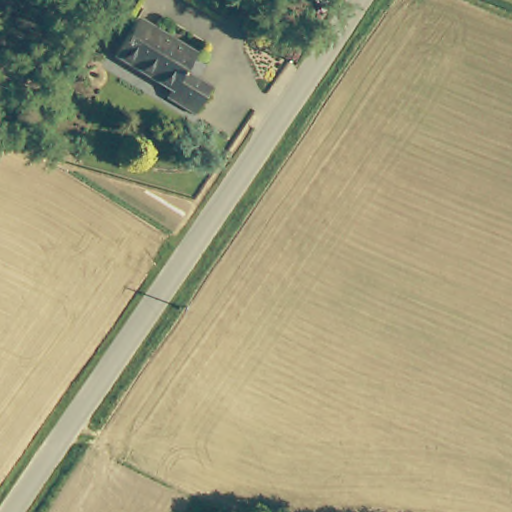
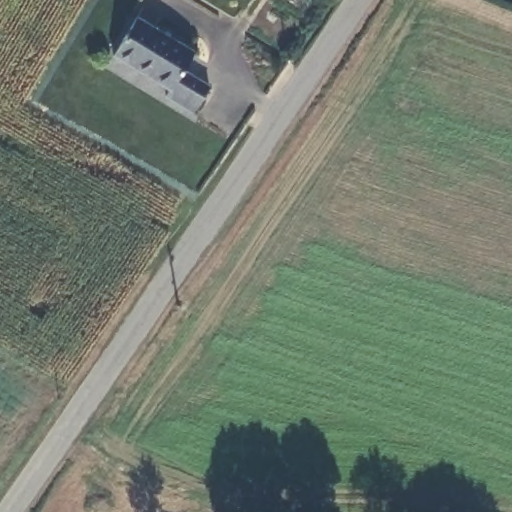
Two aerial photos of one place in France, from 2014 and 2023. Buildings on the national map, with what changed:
unchanged [(195,49),(184,65),(210,83),(194,110),(167,92),(172,86),(116,49),(138,13),(195,49)]

